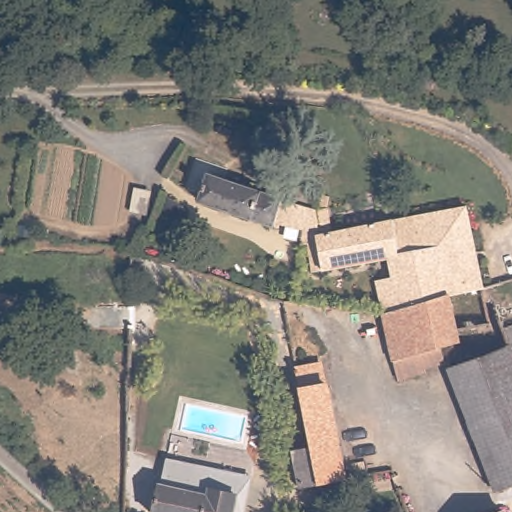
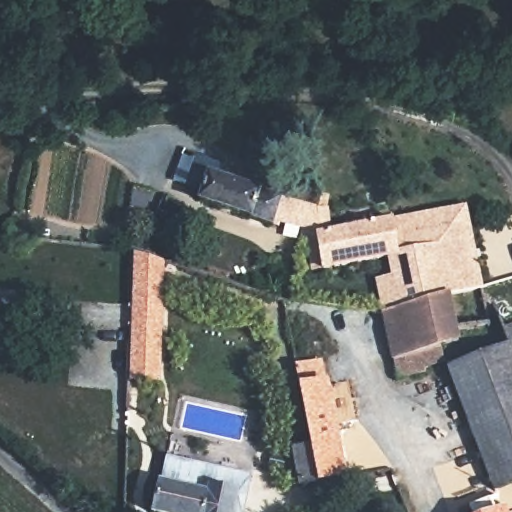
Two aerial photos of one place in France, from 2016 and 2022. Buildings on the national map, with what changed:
unchanged [(316,210),(321,234),(466,207),(482,287),(486,305),(487,310),(496,307),(511,348),(512,348),(512,484),(496,490),(469,422),(446,362),(423,368),(425,373),(397,381),(382,315),(377,282),(393,280),(392,272),(388,260),(381,260),(310,273),(307,254),(317,252),(316,245),(301,245),(299,230),(292,229),(288,228),(285,227),(277,225),(277,229),(271,227),(196,202),(206,176),(316,210)]
new [(166,261),(160,384),(129,382),(134,253),(166,261)]
unchanged [(293,440),(314,440),(295,369),(322,363),(351,475),(325,481),(305,485),(293,440)]
unchanged [(237,488),(235,512),(158,512),(160,486),(207,491),(208,485),(237,488)]

